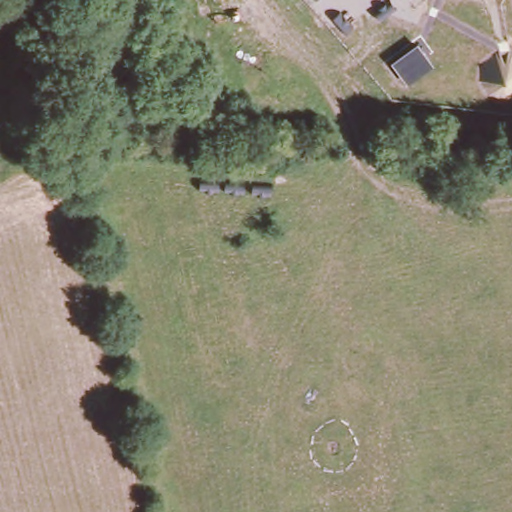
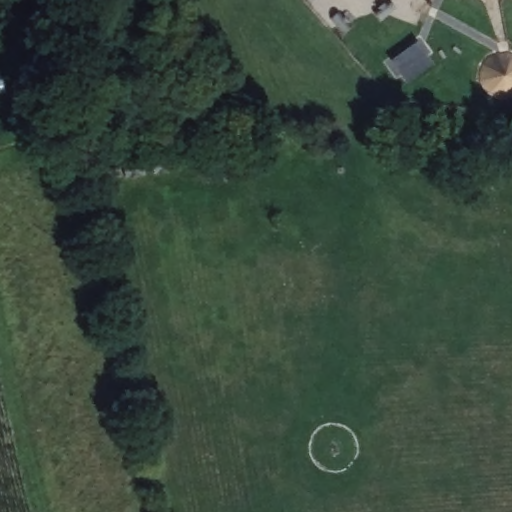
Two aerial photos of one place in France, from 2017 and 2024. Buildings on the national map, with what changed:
unchanged [(432,64),(407,83),(390,61),(417,42),(432,64)]

